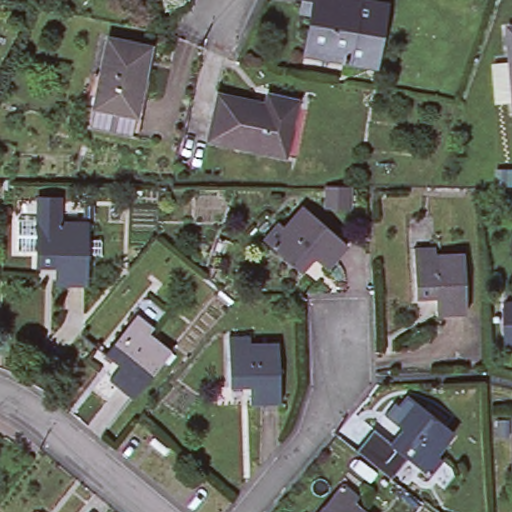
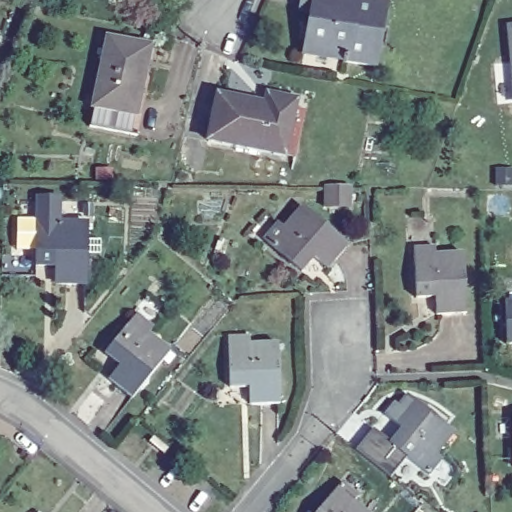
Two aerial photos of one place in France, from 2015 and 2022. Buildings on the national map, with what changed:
unchanged [(339,58),(300,49),(308,13),(294,10),(296,0),(377,0),(382,1),(367,68),(337,61),(339,58)]
unchanged [(507,25),(512,25),(512,85),(507,25)]
unchanged [(92,104),(107,37),(147,46),(133,113),(92,104)]
unchanged [(295,100),(284,154),(206,137),(215,90),(265,100),(267,94),(295,100)]
unchanged [(355,195),(331,194),(331,175),(355,176),(355,195)]
unchanged [(301,272),(262,240),(276,223),(282,227),(301,206),(346,245),(327,268),(314,257),(301,272)]
unchanged [(57,213),(57,221),(86,221),(85,283),(55,283),(55,265),(36,265),(36,247),(17,247),(17,218),(36,218),(36,213),(57,213)]
unchanged [(434,296),(416,297),(413,247),(434,246),(435,252),(462,250),(466,312),(435,313),(434,296)]
unchanged [(503,302),(512,302),(512,345),(506,345),(503,302)]
unchanged [(142,331),(165,350),(126,397),(103,378),(115,365),(99,352),(131,313),(147,326),(142,331)]
unchanged [(246,385),(229,386),(227,335),(247,334),(247,342),(275,341),(278,402),(247,403),(246,385)]
unchanged [(385,414),(395,401),(399,404),(407,393),(455,430),(438,452),(444,457),(431,475),(408,457),(392,478),(360,451),(357,450),(375,427),(392,442),(402,428),(385,414)]
unchanged [(356,512),(315,512),(336,486),(352,500),(347,505),(356,512)]

